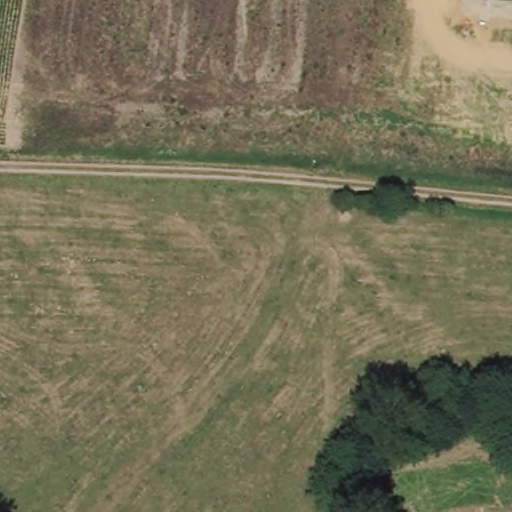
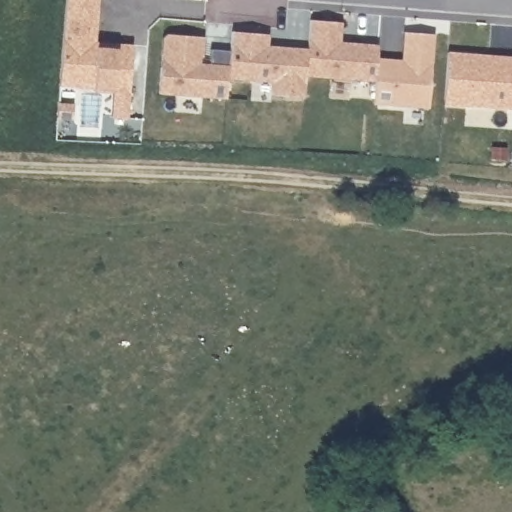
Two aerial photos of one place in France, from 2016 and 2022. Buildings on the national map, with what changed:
new [(61,85),(67,0),(99,0),(96,42),(99,42),(99,47),(117,48),(117,43),(134,44),(130,90),(127,118),(112,117),(114,89),(61,85)]
new [(311,20),(343,22),(342,42),(347,42),(379,45),(378,58),(377,81),(307,76),(308,49),(311,20)]
new [(232,34),(232,31),(270,34),(269,46),(288,47),(308,49),(307,76),(305,97),(272,95),(273,82),(229,79),(231,50),(232,34)]
new [(377,81),(378,58),(403,60),(405,32),(436,34),(430,107),(375,104),(377,81)]
new [(165,37),(169,34),(205,37),(204,57),(202,57),(201,66),(210,66),(212,49),(231,50),(229,79),(227,98),(160,93),(165,37)]
new [(498,56),(512,57),(512,110),(445,105),(448,52),(479,55),(498,56)]

